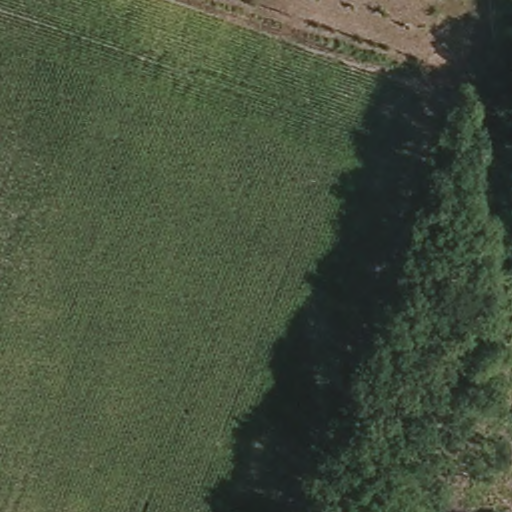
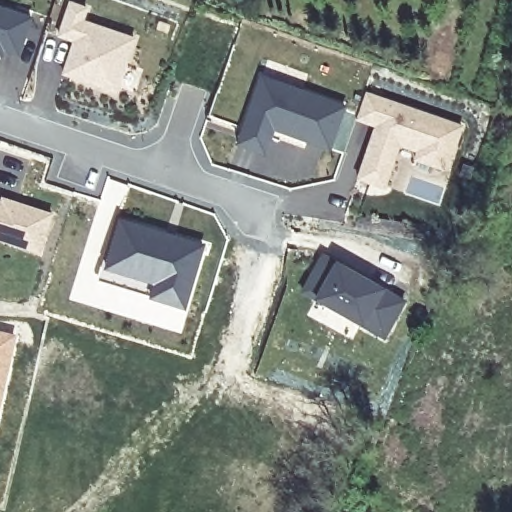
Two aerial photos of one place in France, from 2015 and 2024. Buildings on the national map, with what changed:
new [(67,4),(83,9),(79,22),(130,39),(113,92),(60,74),(71,41),(56,36),(67,4)]
new [(12,14),(28,20),(15,56),(0,51),(0,10),(12,14)]
new [(261,78),(343,109),(327,150),(271,130),(268,139),(261,155),(236,145),(242,129),(261,78)]
new [(462,128),(446,172),(396,154),(384,189),(358,180),(374,135),(377,127),(357,120),(366,94),(462,128)]
new [(13,204),(47,215),(35,254),(0,243),(0,200),(13,204)]
new [(151,298),(97,280),(102,262),(106,262),(120,217),(204,244),(185,308),(151,298)]
new [(404,305),(384,340),(317,302),(304,294),(313,277),(324,259),(404,305)]
new [(14,336),(0,395),(0,332),(14,336)]

